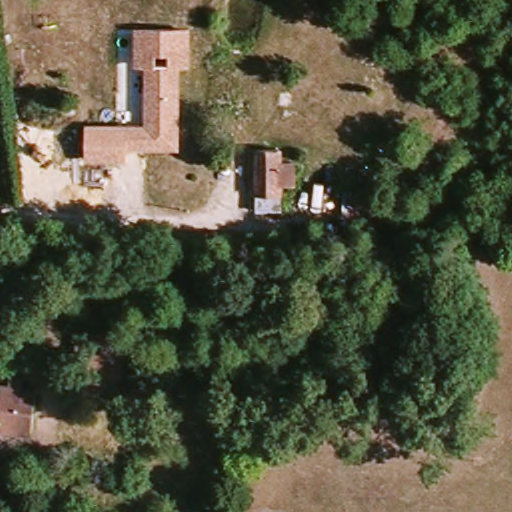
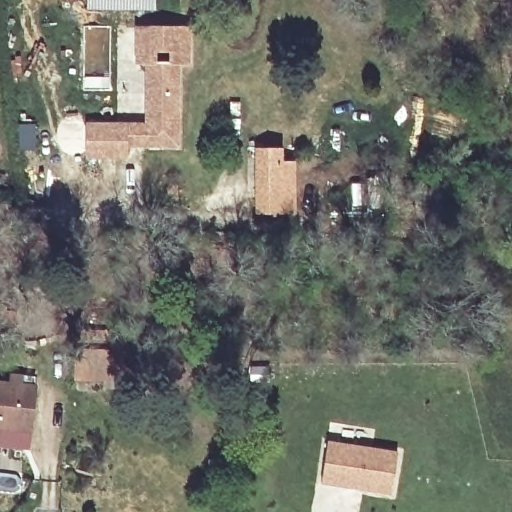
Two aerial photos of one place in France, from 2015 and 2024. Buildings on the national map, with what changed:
new [(155,0),(155,11),(85,10),(86,0),(155,0)]
unchanged [(145,63),(137,63),(137,24),(192,26),(192,65),(182,65),(182,147),(128,147),(128,159),(87,159),(87,120),(145,122),(145,63)]
unchanged [(257,200),(257,139),(285,139),(285,201),(257,200)]
unchanged [(99,381),(75,379),(77,348),(109,350),(108,366),(107,382),(99,381)]
unchanged [(35,392),(32,419),(30,432),(0,428),(0,388),(35,392)]
new [(329,443),(399,452),(393,492),(323,483),(329,443)]

